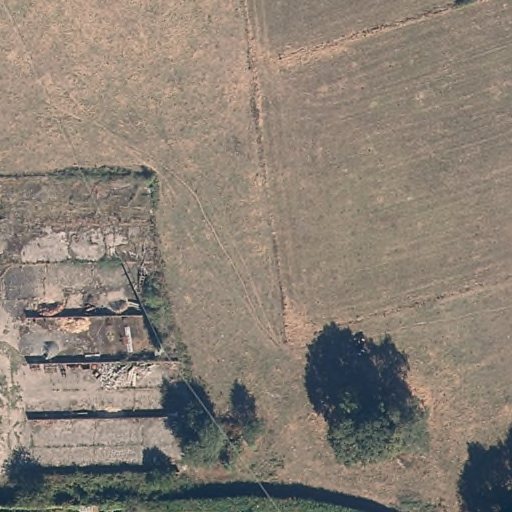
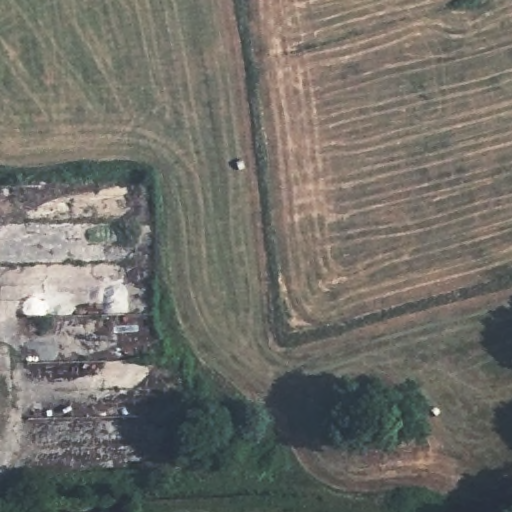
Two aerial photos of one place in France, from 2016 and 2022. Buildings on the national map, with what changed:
[]

